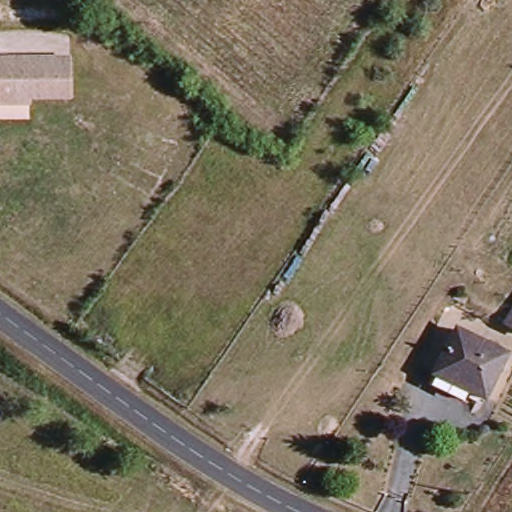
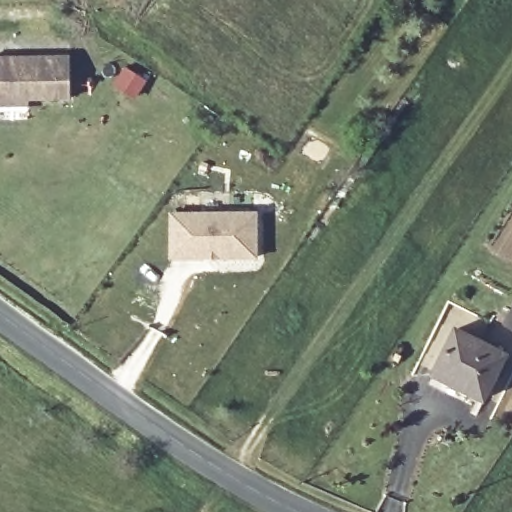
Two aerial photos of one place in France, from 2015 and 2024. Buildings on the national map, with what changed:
unchanged [(72,101),(27,102),(27,107),(0,107),(0,57),(72,57),(72,101)]
new [(175,260),(175,216),(260,216),(260,260),(223,260),(210,260),(175,260)]
unchanged [(512,314),(512,326),(507,322),(512,314)]
unchanged [(488,402),(435,378),(455,334),(508,358),(488,402)]

